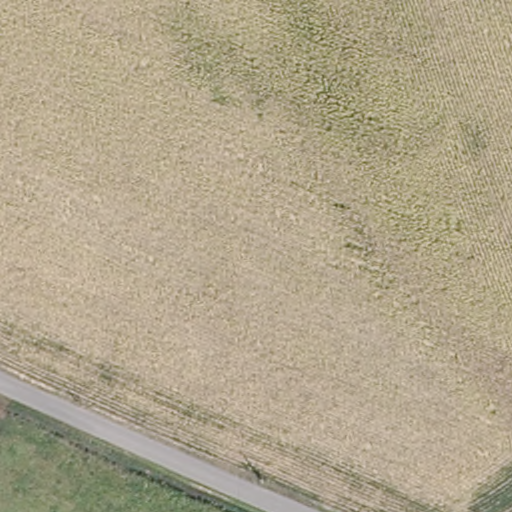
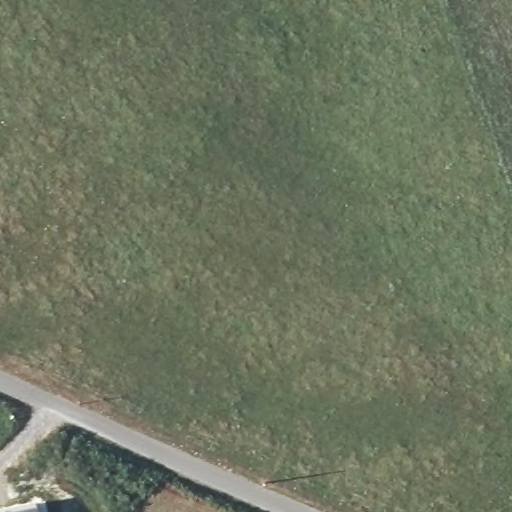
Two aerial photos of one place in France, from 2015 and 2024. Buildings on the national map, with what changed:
new [(44,499),(47,512),(0,512),(0,509),(44,499)]

